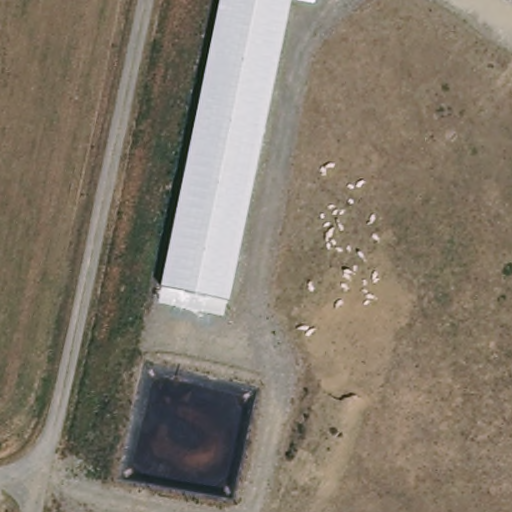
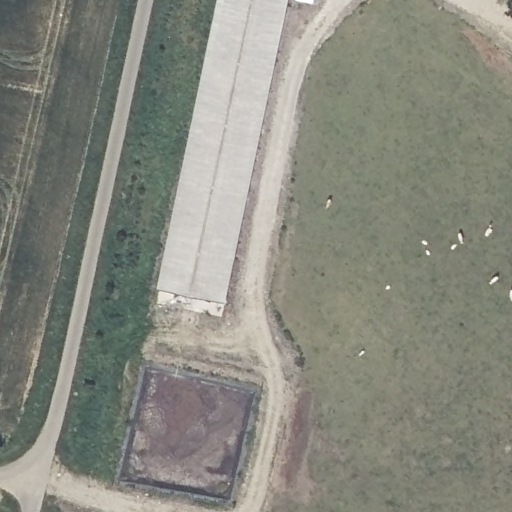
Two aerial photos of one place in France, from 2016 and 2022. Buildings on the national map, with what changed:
unchanged [(220,0),(291,0),(227,302),(160,286),(220,0)]

